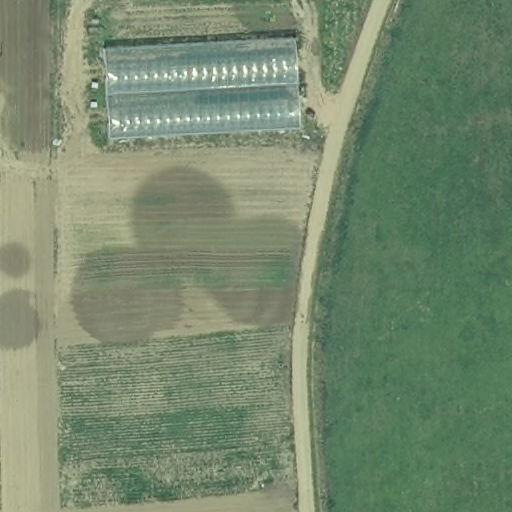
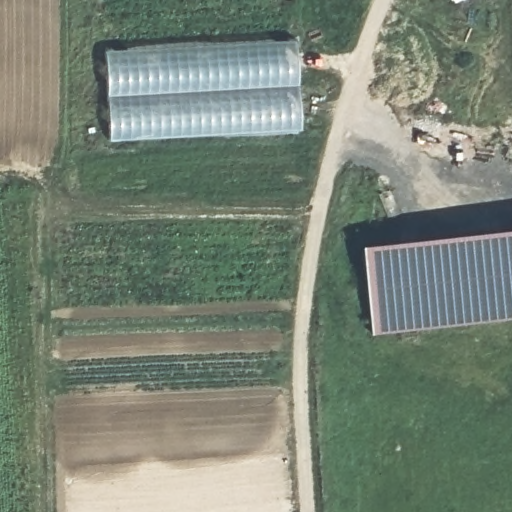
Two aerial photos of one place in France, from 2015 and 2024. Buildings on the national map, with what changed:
unchanged [(103,49),(295,39),(301,129),(110,140),(103,49)]
new [(512,320),(375,336),(368,252),(512,237),(512,320)]

